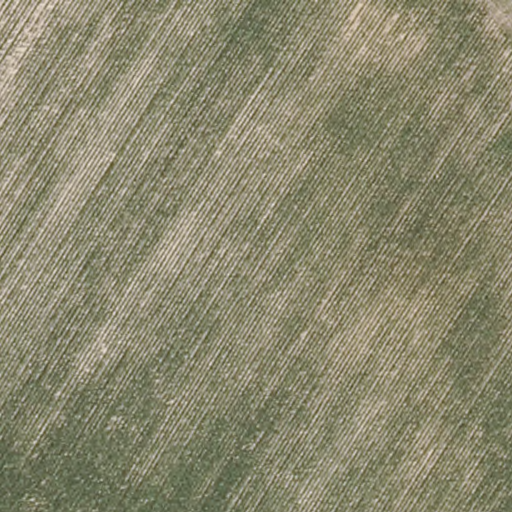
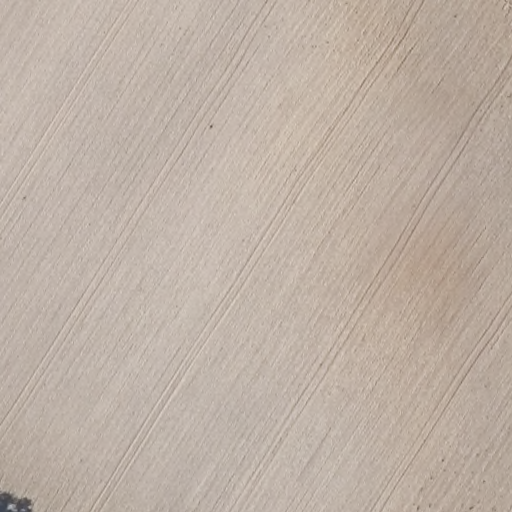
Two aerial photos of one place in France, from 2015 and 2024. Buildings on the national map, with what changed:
[]

